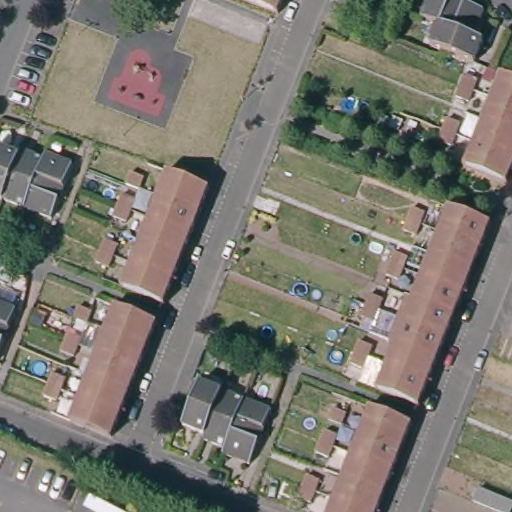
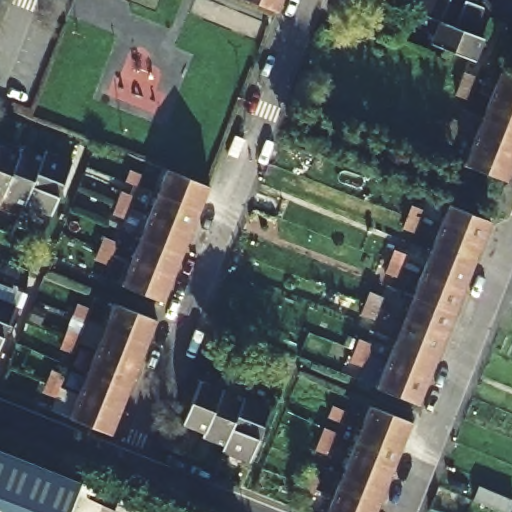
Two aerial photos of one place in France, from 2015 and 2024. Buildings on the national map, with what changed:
unchanged [(278,10),(268,6),(253,0),(282,0),(278,10)]
unchanged [(427,21),(435,0),(455,0),(489,13),(479,41),(441,26),(427,21)]
unchanged [(479,41),(489,45),(481,66),(454,56),(438,50),(441,41),(436,39),(441,26),(479,41)]
unchanged [(466,100),(454,95),(459,84),(459,81),(464,72),(468,74),(476,77),(471,88),(466,100)]
unchanged [(512,104),(492,96),(501,72),(512,76),(512,104)]
unchanged [(492,96),(512,104),(512,130),(483,118),(492,96)]
unchanged [(437,140),(442,127),(447,113),(460,119),(455,132),(449,145),(437,140)]
unchanged [(483,118),(512,130),(512,154),(474,140),(483,118)]
unchanged [(464,164),(474,140),(512,154),(512,163),(506,180),(464,164)]
unchanged [(15,154),(0,194),(0,147),(15,154)]
unchanged [(0,199),(0,194),(15,154),(18,149),(38,157),(19,206),(0,199)]
unchanged [(38,157),(40,152),(68,163),(47,217),(19,206),(38,157)]
unchanged [(131,169),(146,175),(141,187),(126,182),(131,169)]
unchanged [(199,211),(158,194),(166,172),(208,189),(199,211)]
unchanged [(111,217),(116,204),(121,191),(136,197),(131,210),(126,222),(111,217)]
unchanged [(149,217),(158,194),(199,211),(191,233),(149,217)]
unchanged [(471,211),(489,218),(479,241),(439,225),(448,202),(471,211)]
unchanged [(400,228),(404,217),(409,206),(423,211),(419,222),(414,233),(400,228)]
unchanged [(187,243),(182,256),(140,239),(149,217),(191,233),(187,243)]
unchanged [(471,264),(429,247),(439,225),(479,241),(471,264)]
unchanged [(94,262),(99,250),(104,237),(118,242),(113,255),(108,268),(94,262)]
unchanged [(140,239),(182,256),(173,279),(131,262),(140,239)]
unchanged [(463,285),(421,269),(429,247),(471,264),(463,285)]
unchanged [(384,273),(389,261),(394,249),(408,254),(403,266),(398,279),(384,273)]
unchanged [(173,279),(165,300),(164,300),(123,284),(131,262),(173,279)]
unchanged [(421,269),(463,285),(457,299),(454,307),(413,291),(421,269)]
unchanged [(454,307),(444,330),(398,312),(407,289),(413,291),(454,307)]
unchanged [(361,316),(366,304),(371,292),(383,297),(378,309),(373,321),(361,316)]
unchanged [(19,307),(0,356),(0,299),(19,307)]
unchanged [(78,305),(90,310),(85,321),(73,316),(78,305)]
unchanged [(148,345),(105,329),(114,306),(156,323),(148,345)]
unchanged [(389,334),(398,312),(444,330),(436,353),(394,336),(389,334)]
unchanged [(58,352),(63,339),(68,326),(83,332),(78,345),(72,358),(58,352)]
unchanged [(96,352),(105,329),(148,345),(138,369),(96,352)]
unchanged [(390,346),(394,336),(436,353),(428,374),(386,358),(390,346)]
unchanged [(346,363),(351,350),(357,337),(371,342),(366,355),(361,369),(346,363)]
unchanged [(88,373),(96,352),(138,369),(130,389),(88,373)]
unchanged [(428,374),(419,397),(377,381),(381,369),(386,358),(428,374)]
unchanged [(43,394),(48,382),(53,371),(65,376),(60,388),(56,399),(43,394)]
unchanged [(79,395),(88,373),(130,389),(121,411),(79,395)]
unchanged [(223,390),(206,432),(182,423),(192,398),(188,396),(195,378),(223,390)]
unchanged [(246,399),(227,446),(204,437),(206,432),(223,390),(246,399)]
unchanged [(111,436),(69,419),(79,395),(121,411),(111,436)]
unchanged [(273,409),(251,462),(224,452),(227,446),(246,399),(273,409)]
unchanged [(389,486),(346,470),(356,446),(364,426),(373,403),(415,419),(414,420),(406,443),(398,463),(393,476),(389,486)]
unchanged [(326,418),(330,407),(344,412),(339,424),(326,418)]
unchanged [(311,452),(316,438),(321,425),(336,430),(331,444),(326,457),(311,452)]
new [(80,483),(69,512),(0,512),(0,451),(80,483)]
unchanged [(389,486),(380,508),(338,491),(346,470),(389,486)]
unchanged [(294,496),(299,483),(304,471),(318,476),(313,489),(308,502),(294,496)]
unchanged [(474,488),(512,503),(512,510),(511,512),(500,512),(469,500),(474,488)]
unchanged [(330,512),(338,491),(380,508),(378,512),(330,512)]

